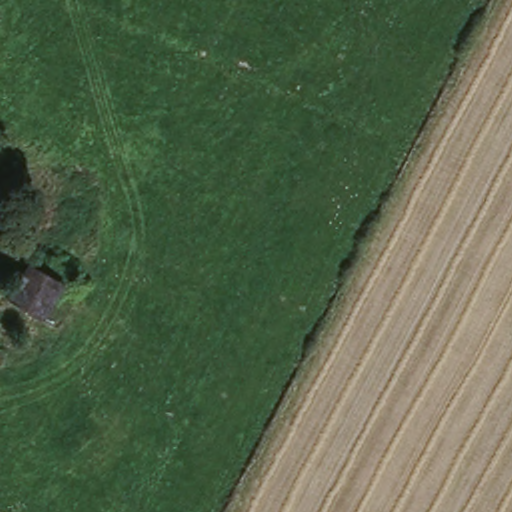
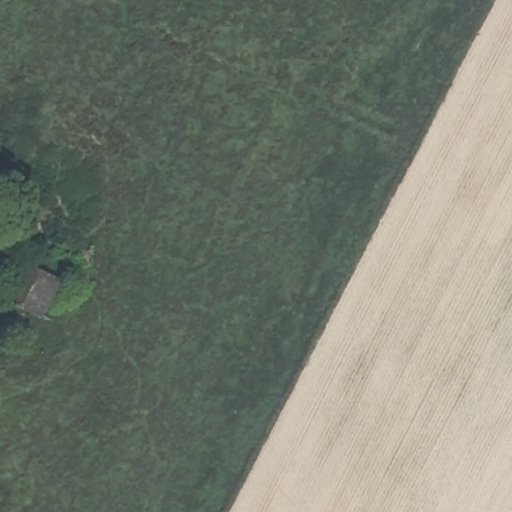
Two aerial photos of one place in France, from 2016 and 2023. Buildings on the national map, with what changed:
unchanged [(72,283),(47,323),(7,297),(30,261),(72,283)]

